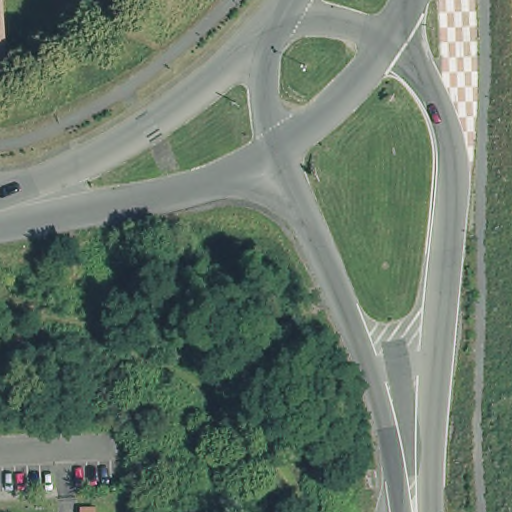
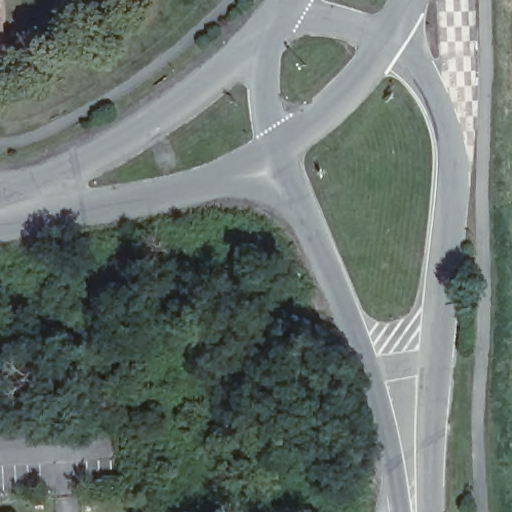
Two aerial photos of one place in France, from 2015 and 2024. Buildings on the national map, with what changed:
unchanged [(0,0),(2,0),(6,64),(0,64),(0,0)]

